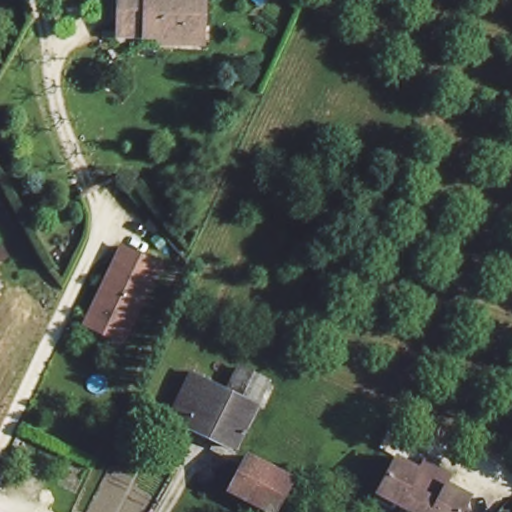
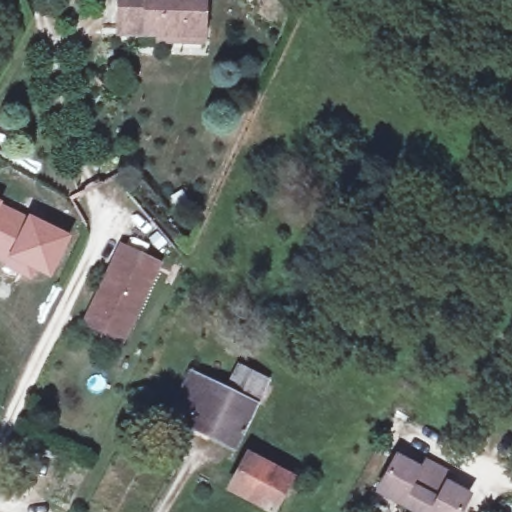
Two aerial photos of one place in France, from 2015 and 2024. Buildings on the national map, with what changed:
unchanged [(166,40),(166,35),(128,38),(125,0),(204,0),(205,19),(206,35),(191,37),(166,40)]
new [(2,266),(0,265),(0,201),(27,215),(2,266)]
new [(27,215),(71,236),(50,281),(36,274),(31,282),(2,266),(27,215)]
unchanged [(158,260),(123,337),(85,320),(120,243),(158,260)]
unchanged [(175,414),(196,370),(233,387),(243,365),(270,378),(237,446),(175,414)]
unchanged [(420,461),(449,476),(445,485),(467,496),(458,512),(413,512),(375,492),(394,457),(416,469),(420,461)]
unchanged [(236,493),(254,458),(295,480),(278,512),(271,512),(236,493)]

